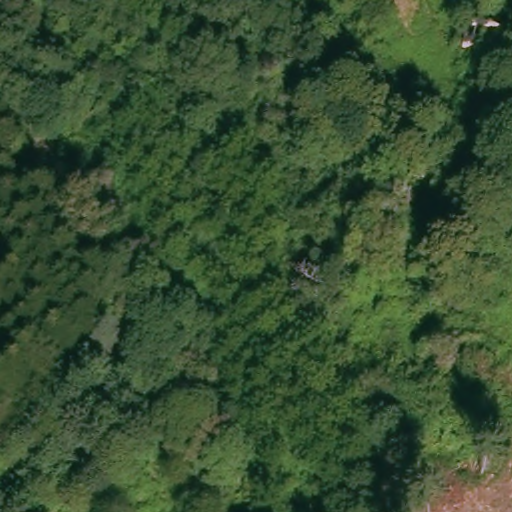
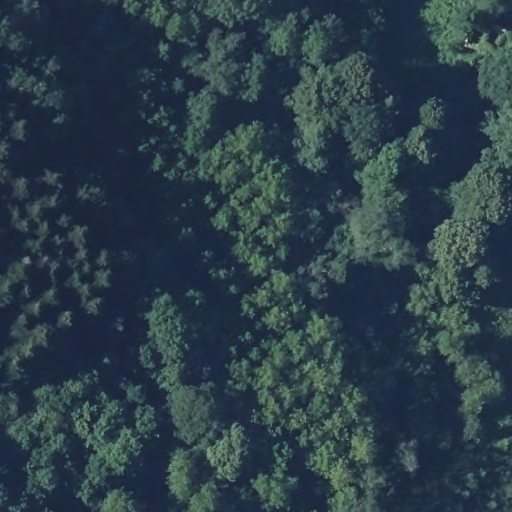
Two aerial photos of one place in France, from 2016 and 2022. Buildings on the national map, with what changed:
unchanged [(487,49),(459,46),(460,26),(489,26),(487,49)]

